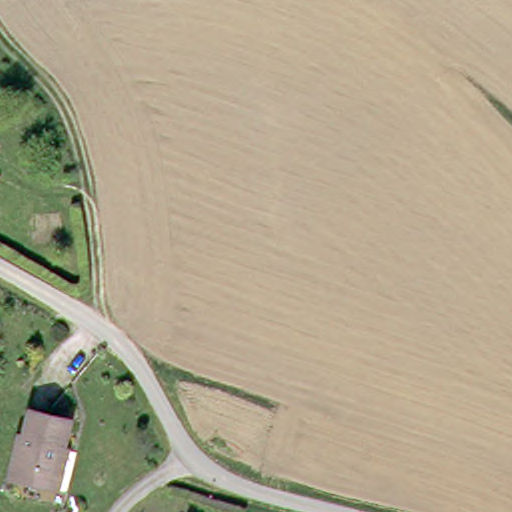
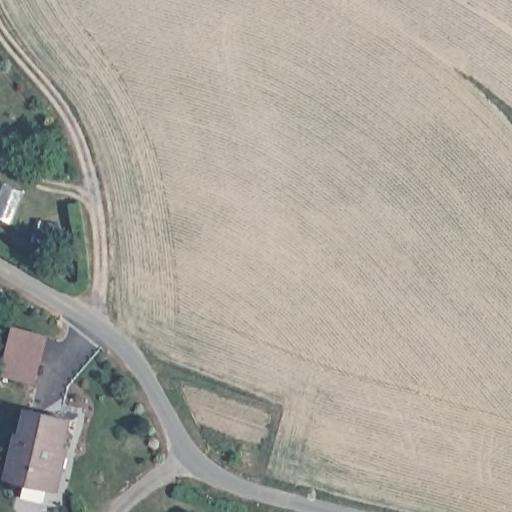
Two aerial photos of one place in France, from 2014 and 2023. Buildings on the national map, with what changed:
new [(48,335),(35,384),(1,375),(13,326),(48,335)]
unchanged [(58,482),(53,480),(14,465),(38,406),(75,422),(66,445),(73,447),(58,482)]

